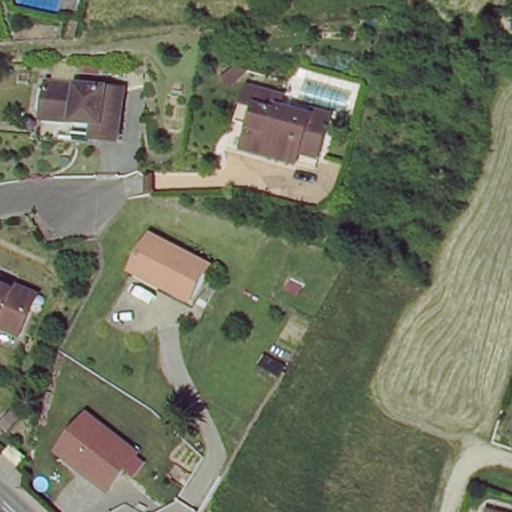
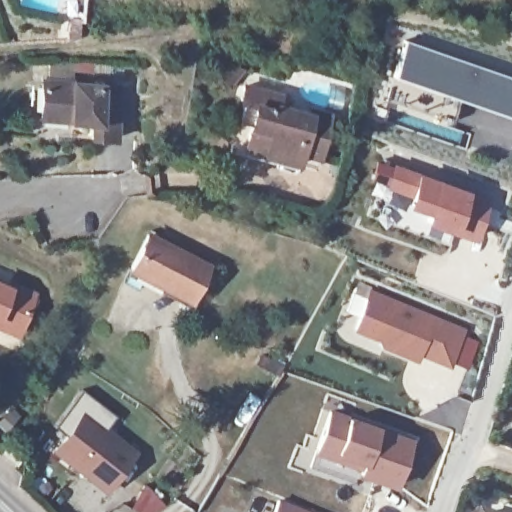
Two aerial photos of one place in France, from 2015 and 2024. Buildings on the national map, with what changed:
unchanged [(79,39),(70,39),(73,18),(82,19),(79,39)]
new [(395,68),(416,76),(425,50),(473,67),(463,93),(444,86),(431,121),(382,103),(395,68)]
unchanged [(243,63),(232,76),(225,69),(234,60),(243,63)]
unchanged [(72,112),(42,111),(43,72),(121,77),(118,128),(93,126),(71,125),(72,112)]
unchanged [(268,148),(247,142),(233,138),(238,117),(249,81),(285,91),(282,104),(289,106),(288,110),(300,113),(302,107),(314,111),(315,106),(332,111),(320,153),(317,162),(268,148)]
new [(417,172),(437,179),(468,191),(489,197),(474,241),(452,234),(423,223),(425,212),(406,206),(408,197),(385,188),(393,164),(417,172)]
unchanged [(189,298),(130,269),(148,234),(171,246),(207,264),(189,298)]
unchanged [(10,279),(27,287),(33,290),(27,305),(17,330),(0,323),(0,281),(7,284),(10,279)]
new [(467,329),(450,368),(420,356),(417,363),(380,347),(380,343),(352,331),(370,289),(467,329)]
new [(357,475),(360,469),(314,453),(330,409),(348,415),(380,427),(412,439),(395,489),(357,475)]
unchanged [(112,453),(92,479),(55,450),(75,424),(112,453)]
demolished [(219,484),(224,476),(235,481),(252,491),(241,512),(203,512),(219,484)]
new [(313,512),(274,512),(280,498),(313,512)]
unchanged [(483,511),(487,512),(483,512),(483,511)]

